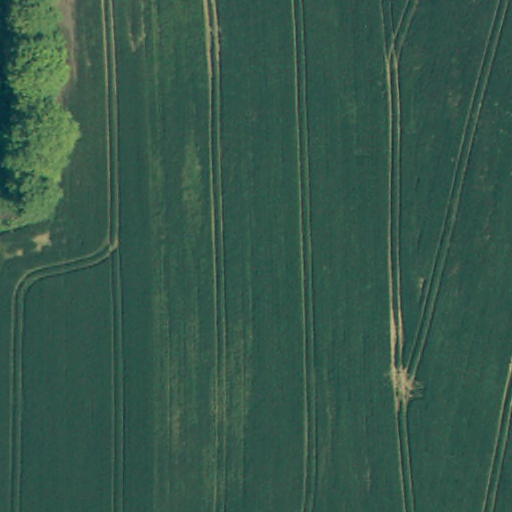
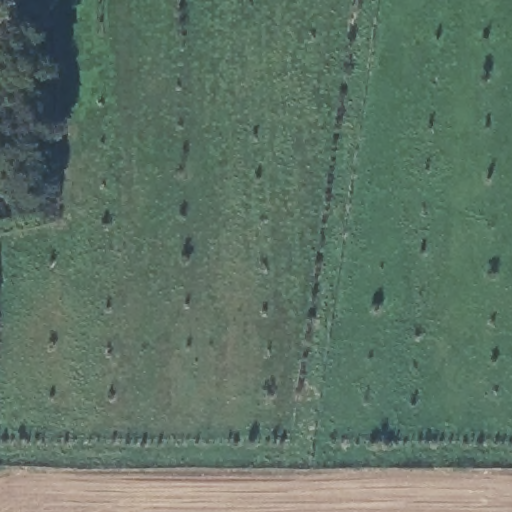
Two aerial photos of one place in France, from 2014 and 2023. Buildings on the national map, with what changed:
[]

